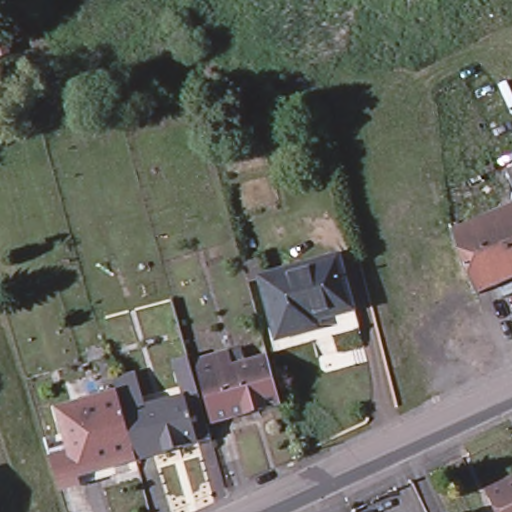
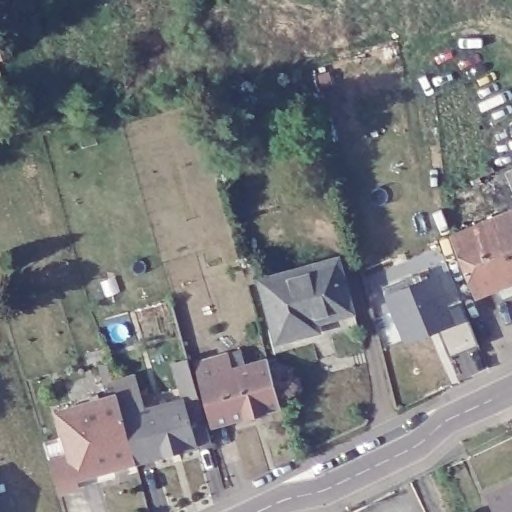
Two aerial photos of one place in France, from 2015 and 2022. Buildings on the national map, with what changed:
unchanged [(9,53),(0,56),(0,45),(5,43),(9,53)]
unchanged [(504,170),(512,165),(512,188),(504,170)]
unchanged [(475,293),(451,233),(512,207),(512,278),(475,293)]
unchanged [(260,277),(273,274),(336,256),(350,308),(315,318),(316,326),(290,333),(277,337),(260,277)]
new [(478,344),(450,354),(440,330),(431,334),(428,328),(407,336),(403,325),(397,327),(382,287),(421,271),(425,280),(433,277),(445,307),(461,301),(478,344)]
unchanged [(192,366),(227,356),(240,352),(246,367),(267,361),(280,408),(210,428),(192,366)]
unchanged [(176,374),(173,365),(187,361),(210,442),(197,446),(176,374)]
unchanged [(135,463),(116,396),(112,382),(134,376),(136,386),(176,374),(197,446),(135,463)]
unchanged [(99,472),(101,482),(59,494),(49,461),(68,455),(56,413),(116,396),(135,463),(99,472)]
unchanged [(486,492),(512,480),(512,512),(495,512),(486,492)]

